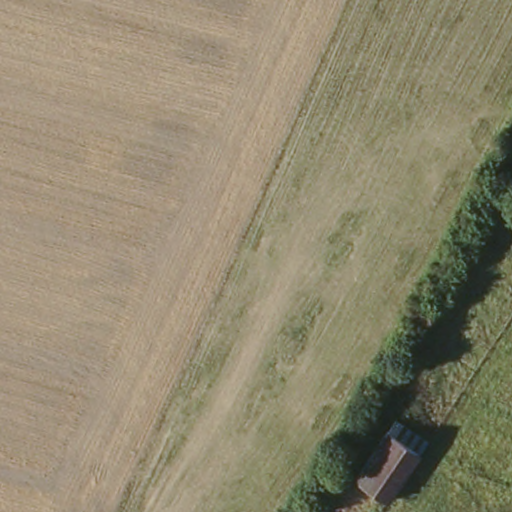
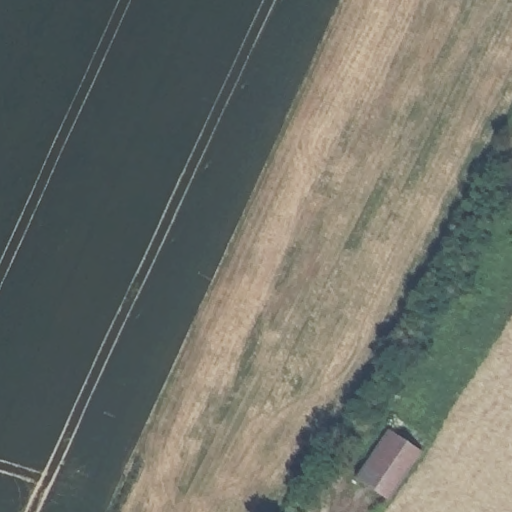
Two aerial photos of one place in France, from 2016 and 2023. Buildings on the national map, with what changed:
unchanged [(427,437),(393,497),(358,479),(392,419),(427,437)]

